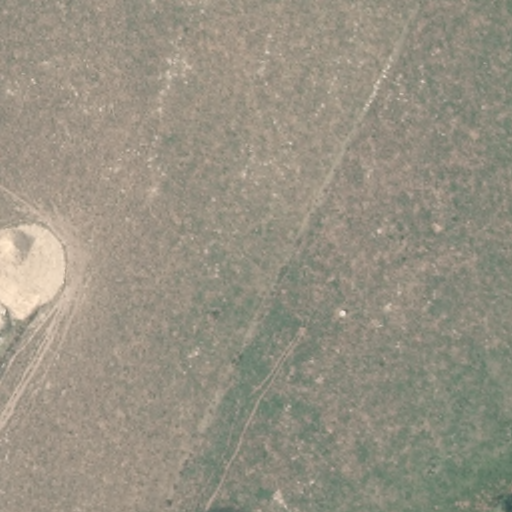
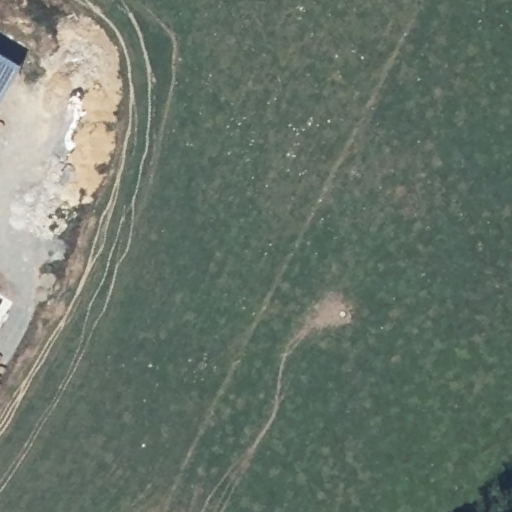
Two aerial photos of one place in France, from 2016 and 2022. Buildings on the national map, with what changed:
new [(21,70),(0,105),(0,58),(21,70)]

